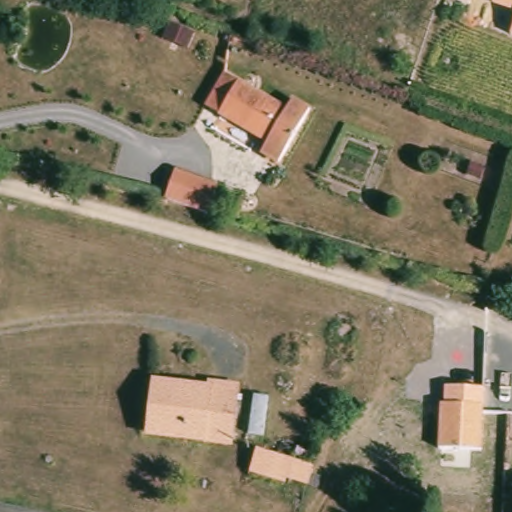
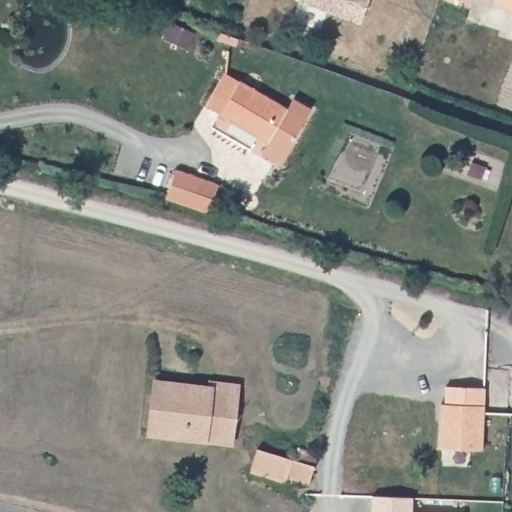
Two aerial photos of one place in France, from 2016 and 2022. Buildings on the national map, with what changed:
new [(297,0),(369,0),(360,24),(297,0)]
unchanged [(455,0),(469,0),(468,5),(455,0)]
unchanged [(494,0),(512,0),(512,13),(493,6),(494,0)]
unchanged [(512,30),(512,37),(510,36),(512,30)]
unchanged [(221,104),(209,96),(221,74),(283,110),(289,100),(306,110),(274,164),(270,161),(257,154),(263,144),(215,116),(221,104)]
unchanged [(210,183),(219,186),(209,214),(166,200),(176,171),(210,183)]
unchanged [(210,394),(210,389),(237,392),(230,449),(148,438),(154,387),(210,394)]
unchanged [(482,409),(481,453),(439,451),(440,407),(482,409)]
unchanged [(317,493),(308,491),(288,484),(286,490),(251,479),(258,455),(294,466),(298,454),(317,460),(313,472),(323,475),(317,493)]
new [(413,498),(413,512),(371,512),(372,497),(413,498)]

